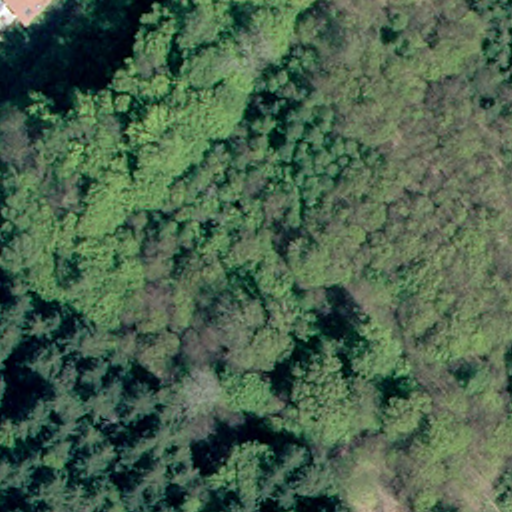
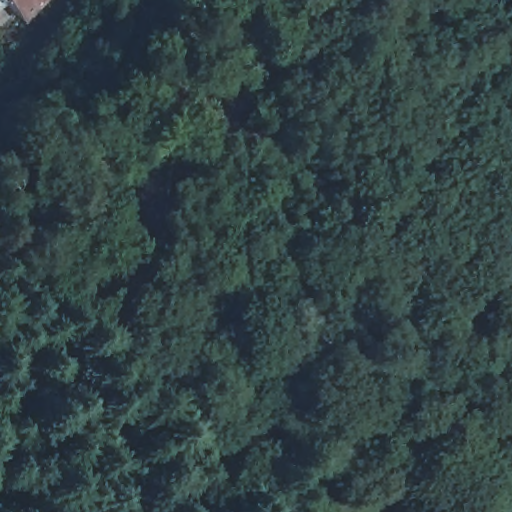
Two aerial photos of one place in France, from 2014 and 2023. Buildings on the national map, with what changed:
unchanged [(10,0),(18,0),(15,4),(10,0)]

